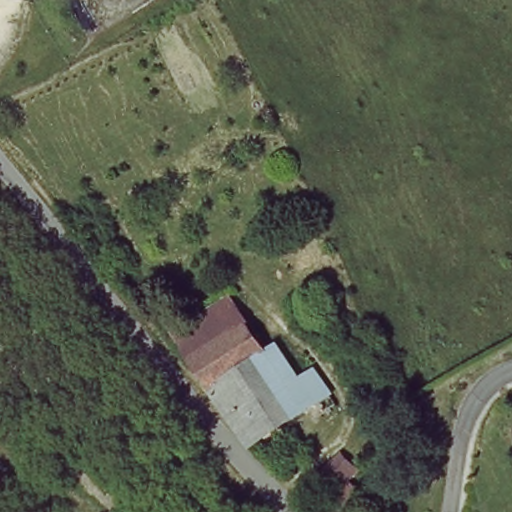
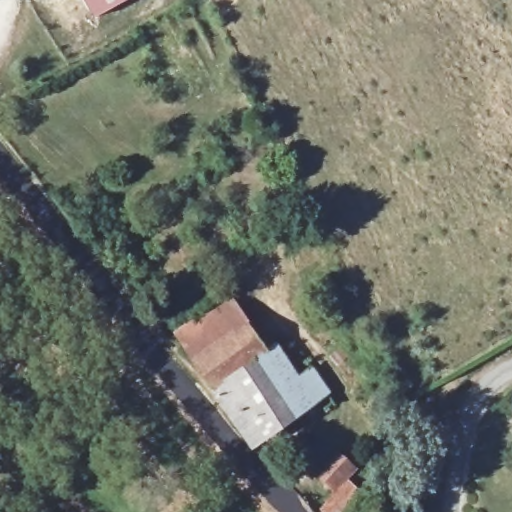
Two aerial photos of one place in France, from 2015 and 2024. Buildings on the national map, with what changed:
new [(85,0),(123,0),(94,16),(85,0)]
unchanged [(176,329),(223,294),(260,351),(213,385),(176,329)]
unchanged [(297,434),(286,417),(251,441),(213,385),(260,351),(268,345),(281,366),(296,357),(306,372),(331,409),(325,413),(310,424),(297,434)]
unchanged [(329,494),(315,481),(341,450),(355,464),(329,494)]
unchanged [(365,512),(331,512),(351,488),(371,506),(365,512)]

